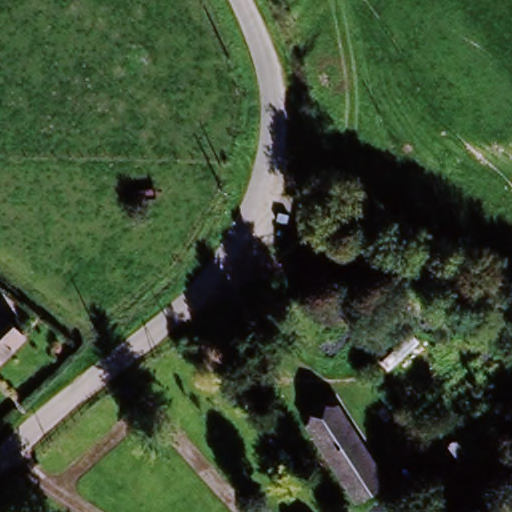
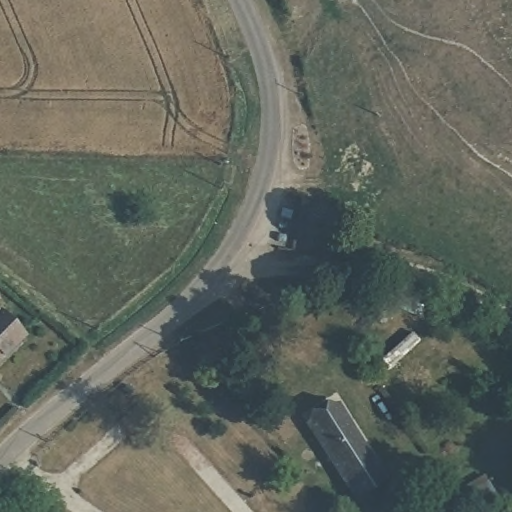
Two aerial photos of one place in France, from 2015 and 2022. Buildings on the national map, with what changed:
unchanged [(0,321),(15,335),(0,353),(0,321)]
unchanged [(331,396),(381,469),(354,488),(303,415),(331,396)]

